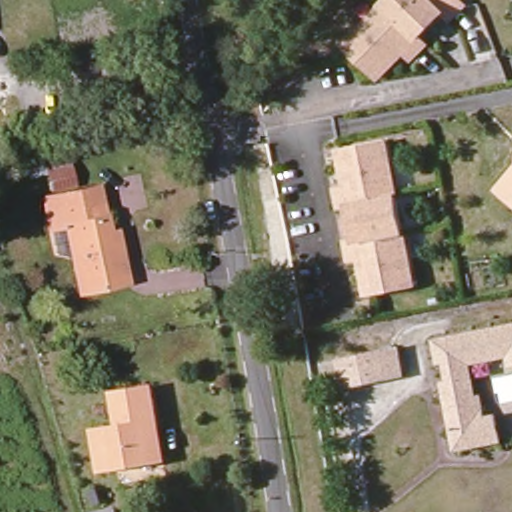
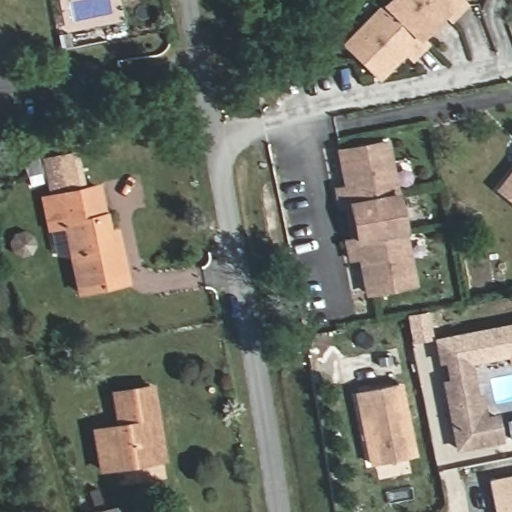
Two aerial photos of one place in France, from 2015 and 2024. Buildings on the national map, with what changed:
unchanged [(384,9),(393,0),(425,0),(442,16),(417,41),(384,9)]
unchanged [(463,10),(449,24),(442,16),(425,0),(453,0),(463,10)]
unchanged [(384,9),(417,41),(424,49),(411,62),(400,52),(397,55),(400,59),(378,82),(344,49),(384,9)]
unchanged [(380,140),(393,193),(343,205),(333,207),(329,191),(343,187),(342,182),(337,184),(330,152),(380,140)]
unchanged [(116,242),(125,283),(73,293),(60,229),(45,231),(38,198),(46,196),(38,156),(62,151),(71,191),(94,186),(104,232),(114,230),(116,242)]
unchanged [(512,167),(512,204),(495,190),(512,167)]
unchanged [(393,193),(402,229),(351,240),(343,205),(393,193)]
unchanged [(414,281),(364,293),(356,262),(361,261),(360,256),(346,260),(342,243),(351,240),(402,229),(414,281)]
unchanged [(449,405),(444,385),(450,384),(444,361),(438,363),(434,343),(512,325),(512,361),(509,362),(507,353),(466,363),(475,399),(479,398),(484,420),(495,416),(501,439),(459,449),(454,427),(452,427),(447,406),(449,405)]
unchanged [(390,350),(396,375),(382,378),(348,386),(341,361),(375,353),(390,350)]
new [(397,384),(411,454),(367,463),(353,393),(397,384)]
unchanged [(149,462),(96,471),(88,429),(114,425),(109,394),(149,387),(154,418),(161,460),(149,462)]
new [(512,474),(512,512),(493,512),(487,478),(512,474)]
unchanged [(116,512),(93,512),(114,506),(116,512)]

